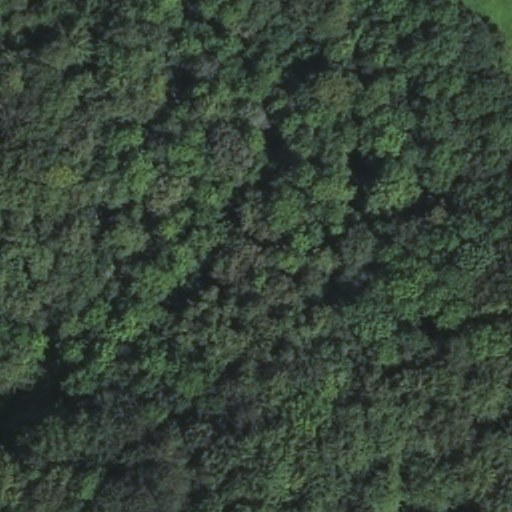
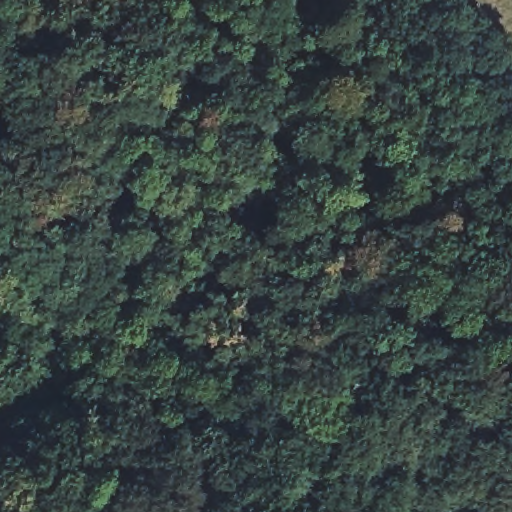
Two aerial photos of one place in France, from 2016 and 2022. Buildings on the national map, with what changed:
[]

